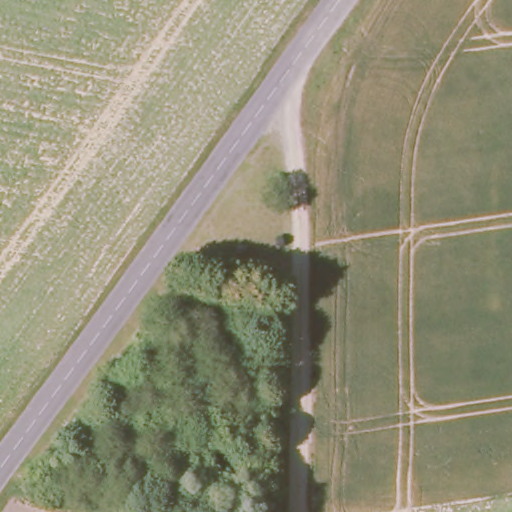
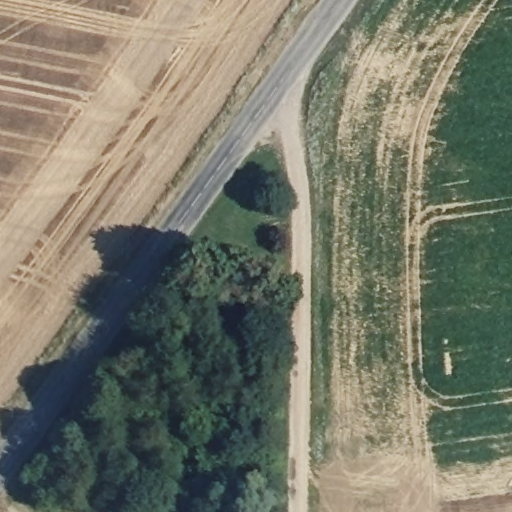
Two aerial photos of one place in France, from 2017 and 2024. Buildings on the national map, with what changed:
unchanged [(252,245),(250,256),(240,254),(243,243),(252,245)]

